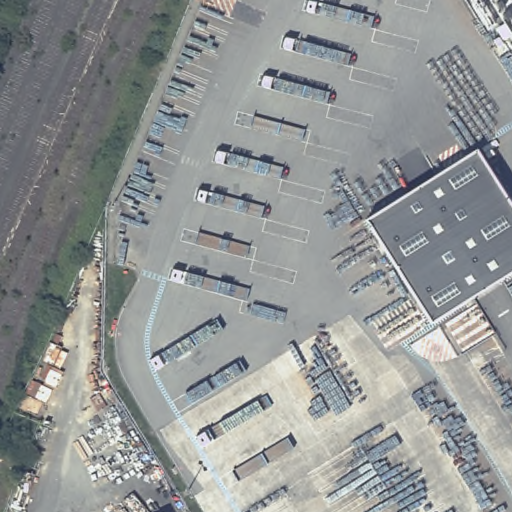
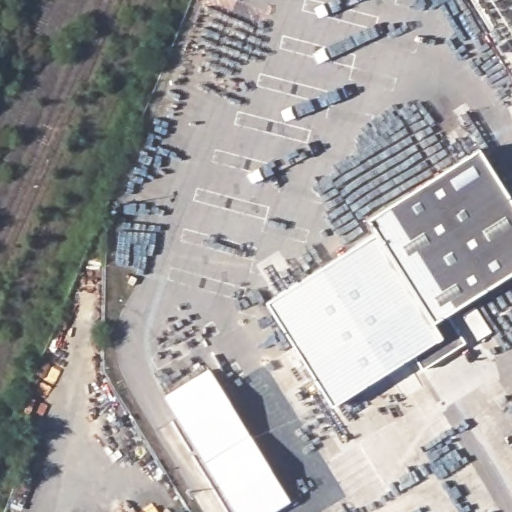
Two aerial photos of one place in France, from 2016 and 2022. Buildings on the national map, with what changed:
unchanged [(512,196),(512,273),(435,320),(371,217),(482,147),(512,196)]
new [(373,234),(365,221),(371,217),(435,320),(449,311),(471,346),(418,379),(405,360),(329,407),(263,303),(373,234)]
new [(344,496),(319,512),(233,512),(177,420),(264,364),(344,496)]

